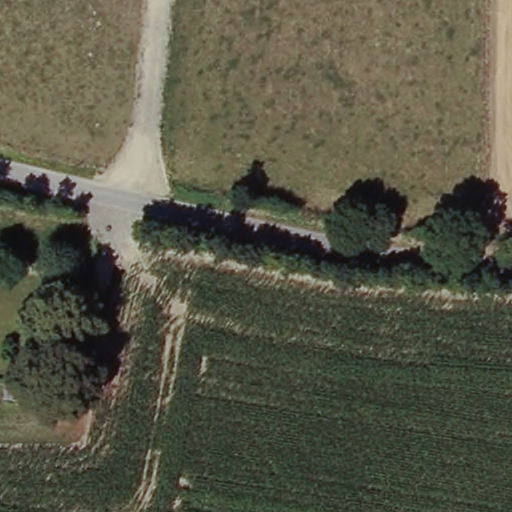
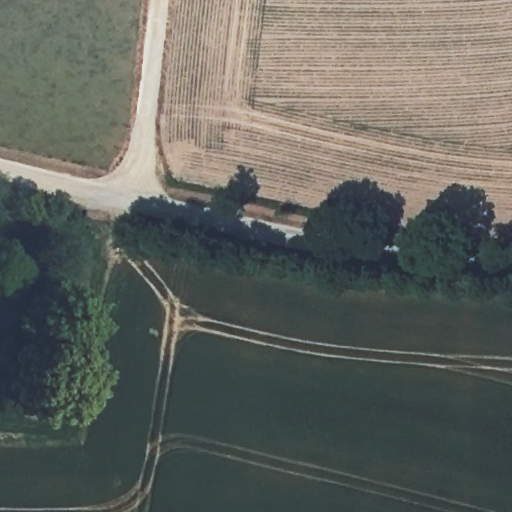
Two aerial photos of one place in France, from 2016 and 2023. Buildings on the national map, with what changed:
unchanged [(2,397),(3,381),(28,382),(27,398),(2,397)]

